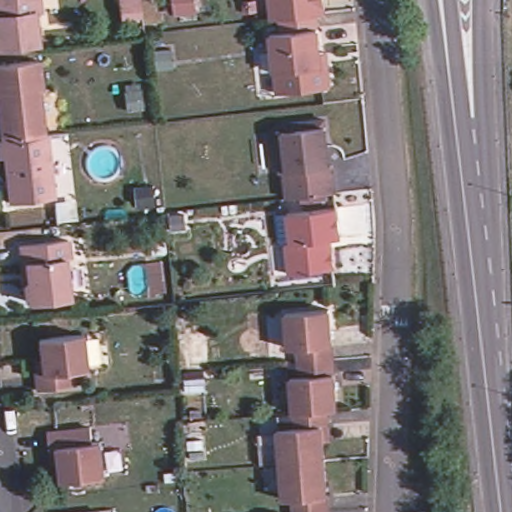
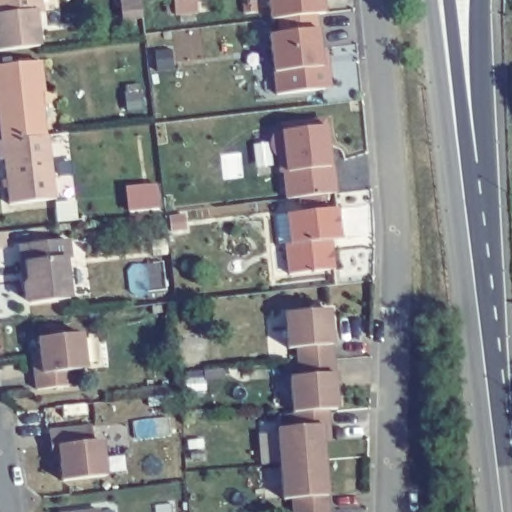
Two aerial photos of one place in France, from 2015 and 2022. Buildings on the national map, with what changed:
unchanged [(36,17),(40,51),(0,55),(0,0),(41,0),(43,16),(36,17)]
unchanged [(191,12),(171,14),(170,0),(189,0),(191,12)]
unchanged [(325,72),(326,87),(321,95),(275,100),(269,40),(279,39),(277,24),(270,25),(267,0),(320,0),(321,19),(314,20),(315,35),(318,61),(324,60),(325,72)]
unchanged [(0,109),(0,70),(41,65),(44,96),(41,96),(45,140),(4,145),(0,109)]
unchanged [(329,151),(326,159),(326,172),(335,172),(338,199),(291,204),(288,177),(284,178),(283,163),(277,155),(276,146),(279,138),(286,137),(286,131),(327,126),(329,151)]
unchanged [(49,140),(56,204),(11,209),(6,164),(3,164),(0,145),(4,145),(45,140),(49,140)]
unchanged [(338,243),(326,245),(326,252),(329,252),(329,254),(331,274),(287,279),(284,250),(289,249),(286,219),(334,213),(338,243)]
unchanged [(67,262),(63,263),(67,303),(28,307),(22,302),(21,288),(25,287),(23,267),(18,267),(17,249),(66,244),(67,262)]
unchanged [(299,351),(292,351),(289,315),(333,313),(336,364),(301,365),(299,351)]
unchanged [(39,366),(36,345),(80,341),(84,376),(67,377),(68,393),(35,397),(33,380),(31,367),(39,366)]
unchanged [(339,415),(330,415),(294,416),(293,380),(301,380),(301,365),(336,364),(339,415)]
unchanged [(281,432),(296,430),(294,416),(330,415),(331,430),(324,431),(326,464),(283,467),(281,432)]
unchanged [(103,444),(108,480),(65,485),(62,463),(54,464),(50,435),(58,434),(93,430),(95,444),(103,444)]
unchanged [(295,512),(294,502),(286,502),(283,467),(326,464),(329,512),(295,512)]

